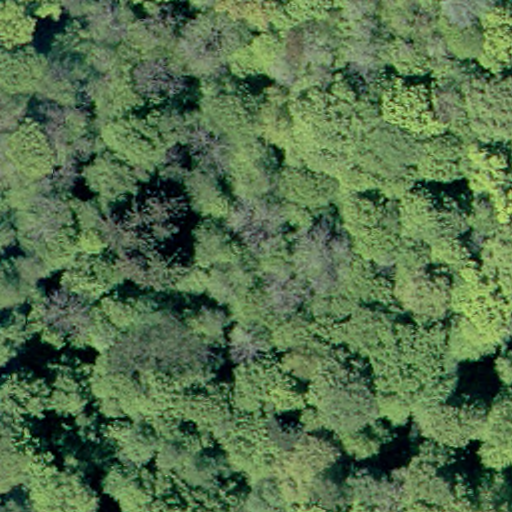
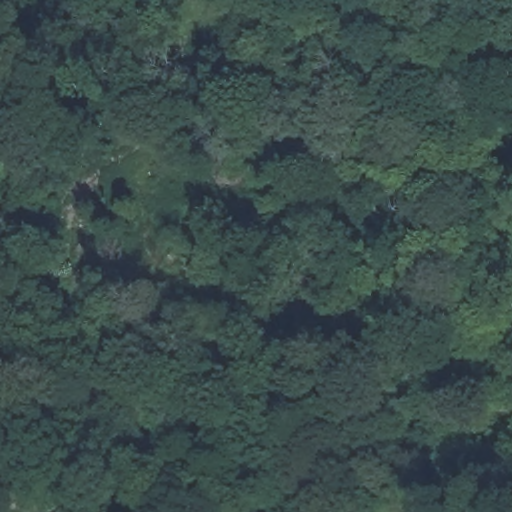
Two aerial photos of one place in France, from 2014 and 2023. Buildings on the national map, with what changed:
[]

